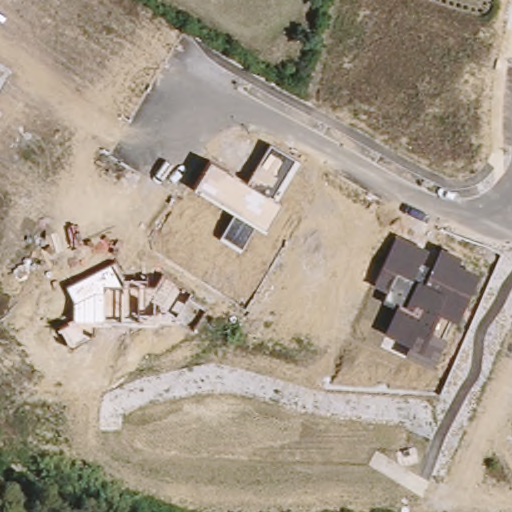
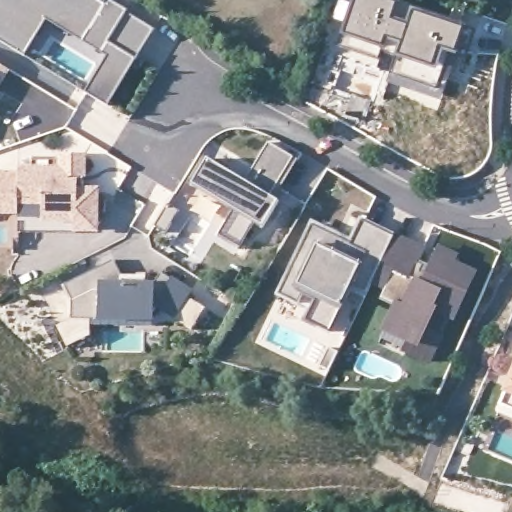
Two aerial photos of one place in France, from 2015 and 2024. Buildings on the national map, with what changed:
new [(46,17),(23,55),(0,40),(0,0),(96,0),(106,6),(109,1),(155,30),(136,60),(135,59),(106,105),(102,102),(88,94),(111,56),(103,52),(46,17)]
new [(395,17),(408,22),(412,7),(478,31),(469,60),(460,57),(458,67),(455,66),(443,101),(388,83),(396,57),(384,53),(382,61),(337,45),(355,0),(394,0),(399,2),(395,17)]
unchanged [(0,85),(0,64),(10,70),(0,85)]
unchanged [(209,157),(248,181),(271,142),(299,160),(275,199),(277,201),(263,229),(256,225),(241,249),(218,237),(233,211),(191,186),(209,157)]
new [(75,233),(75,222),(45,222),(45,206),(18,206),(18,216),(0,215),(0,172),(19,172),(19,166),(60,166),(60,155),(88,155),(88,177),(83,177),(84,187),(101,187),(100,234),(75,233)]
new [(372,282),(366,297),(351,290),(331,334),(305,322),(316,298),(305,293),(299,304),(278,295),(311,220),(352,237),(361,217),(395,233),(372,282)]
unchanged [(395,305),(382,300),(386,289),(372,282),(395,233),(427,246),(422,260),(431,263),(438,246),(460,254),(457,262),(479,270),(458,321),(437,311),(430,329),(444,336),(432,365),(402,352),(407,340),(383,331),(395,305)]
new [(171,279),(173,277),(194,289),(190,298),(206,308),(193,330),(156,305),(155,325),(91,325),(91,337),(69,347),(58,327),(72,319),(74,302),(65,286),(114,261),(120,276),(147,276),(147,283),(155,283),(161,273),(171,279)]
new [(501,405),(512,375),(512,409),(501,405)]

